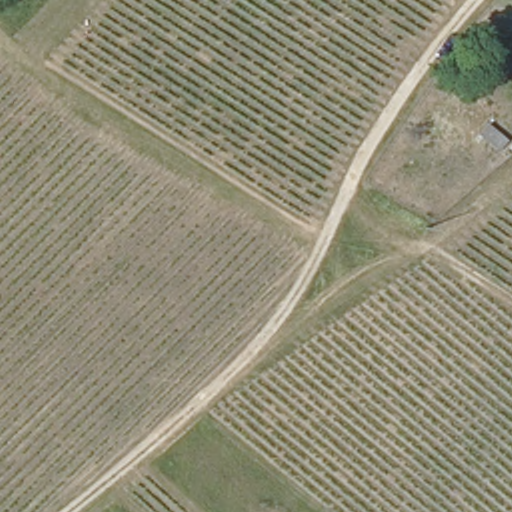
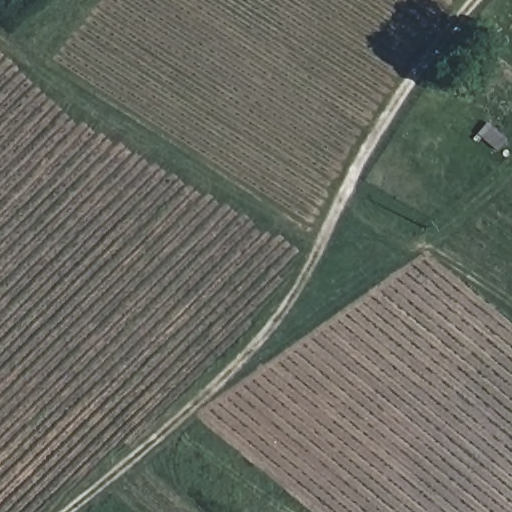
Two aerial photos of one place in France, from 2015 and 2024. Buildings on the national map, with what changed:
unchanged [(501,154),(484,142),(481,145),(475,140),(486,125),(509,142),(501,154)]

